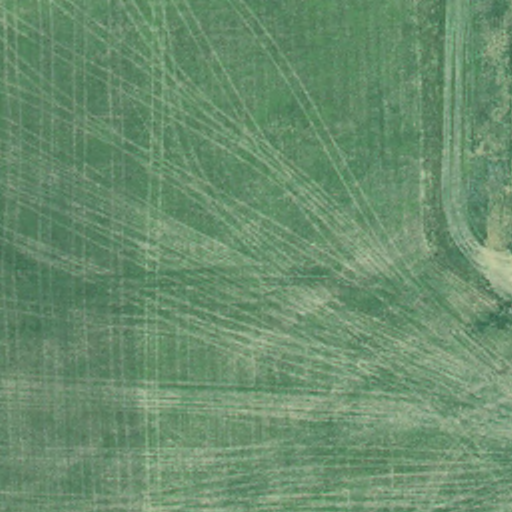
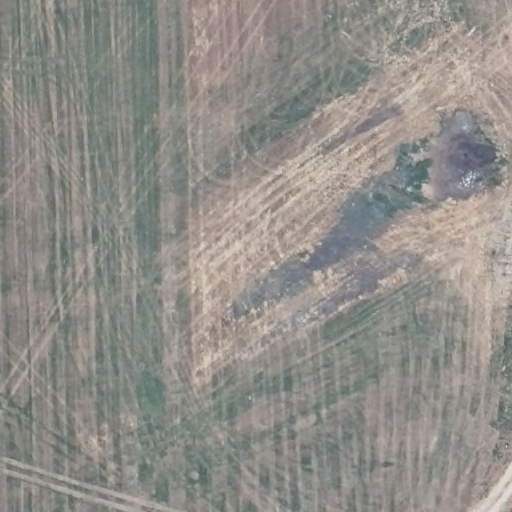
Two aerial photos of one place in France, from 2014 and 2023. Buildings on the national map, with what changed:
[]

